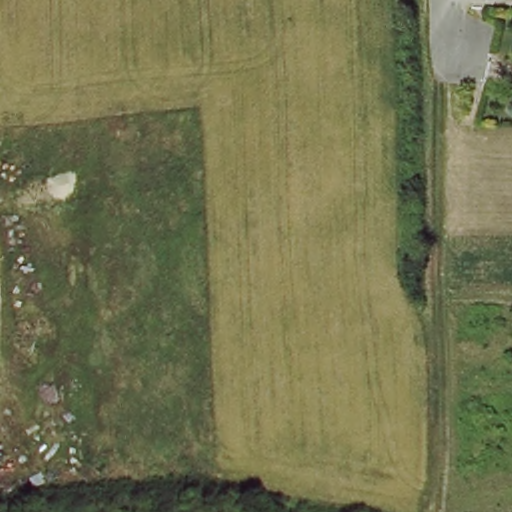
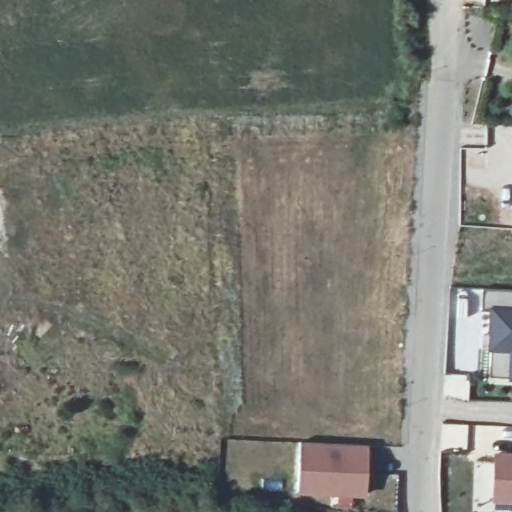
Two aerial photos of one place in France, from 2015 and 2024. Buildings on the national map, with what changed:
new [(496,375),(499,309),(488,309),(489,288),(512,289),(512,376),(496,375)]
new [(363,449),(361,490),(296,486),(299,444),(363,449)]
new [(512,452),(512,504),(491,503),(493,451),(512,452)]

